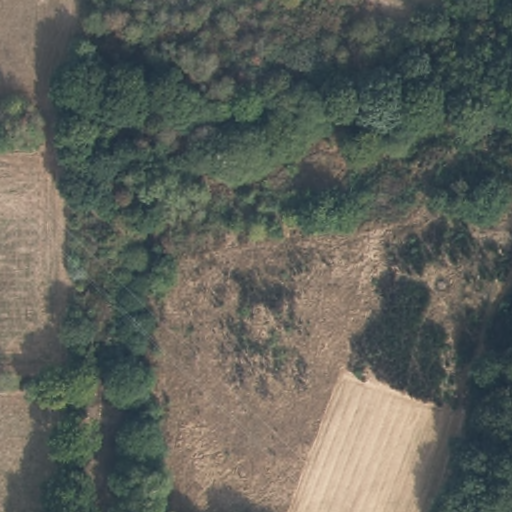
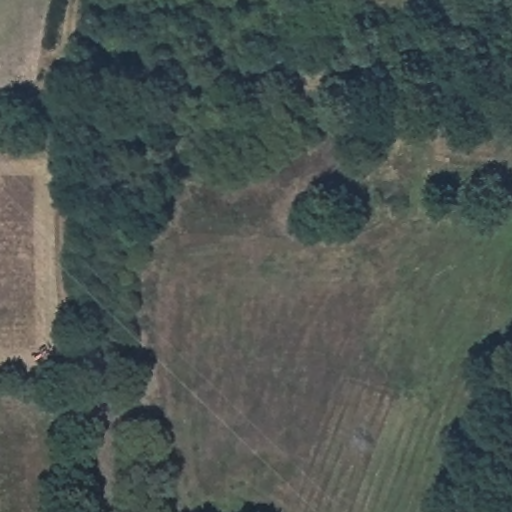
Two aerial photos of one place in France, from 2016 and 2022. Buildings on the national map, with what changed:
[]

